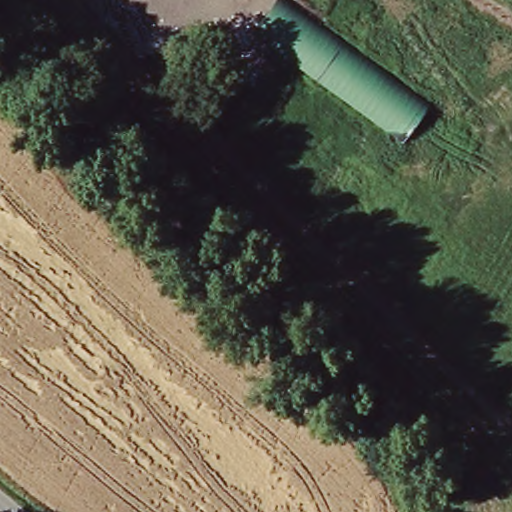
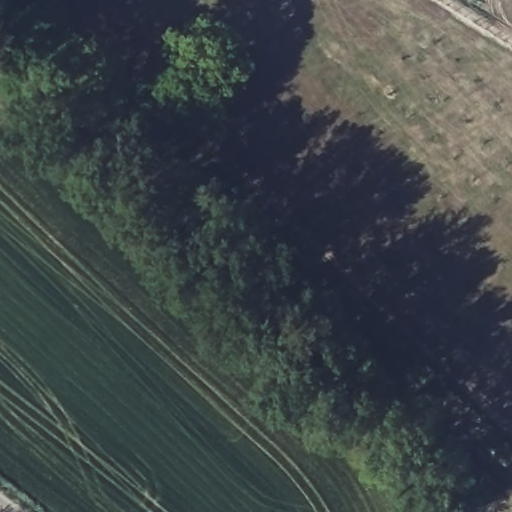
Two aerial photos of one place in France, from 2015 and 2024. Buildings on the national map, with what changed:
demolished [(430,101),(405,139),(252,29),(274,0),(287,0),(430,101)]

